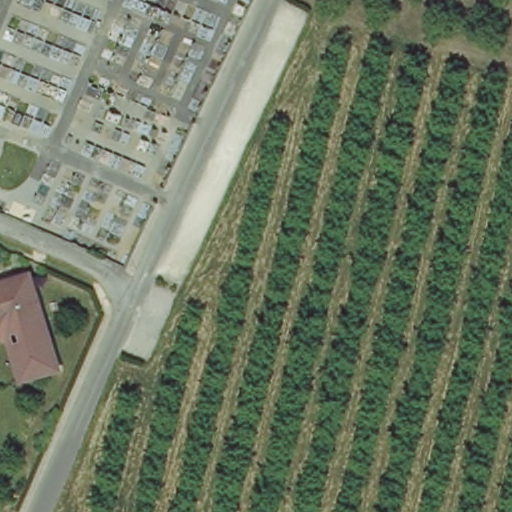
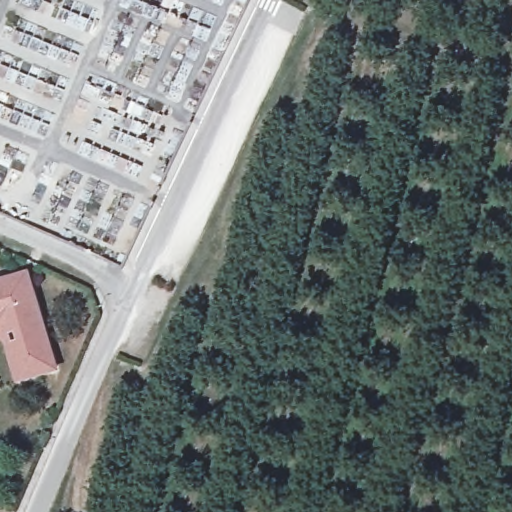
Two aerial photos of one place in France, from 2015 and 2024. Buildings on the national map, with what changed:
unchanged [(32,288),(53,367),(20,376),(11,345),(22,341),(17,327),(8,330),(0,326),(0,283),(15,278),(32,288)]

